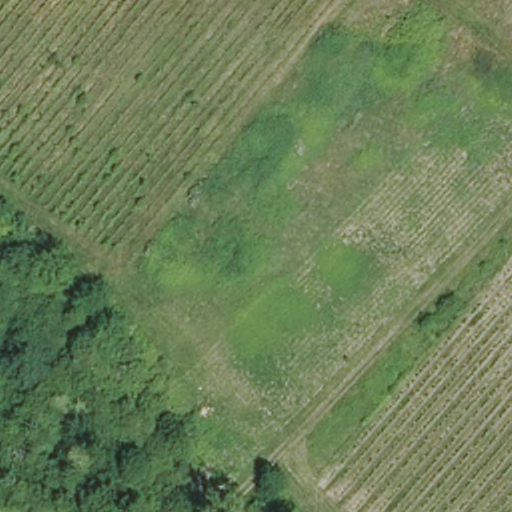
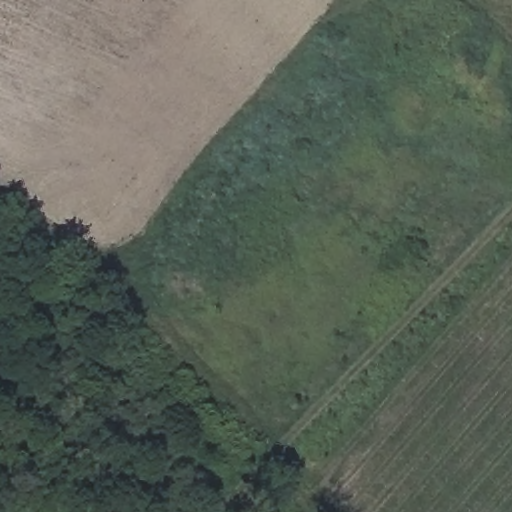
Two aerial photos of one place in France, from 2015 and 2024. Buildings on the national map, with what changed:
[]

